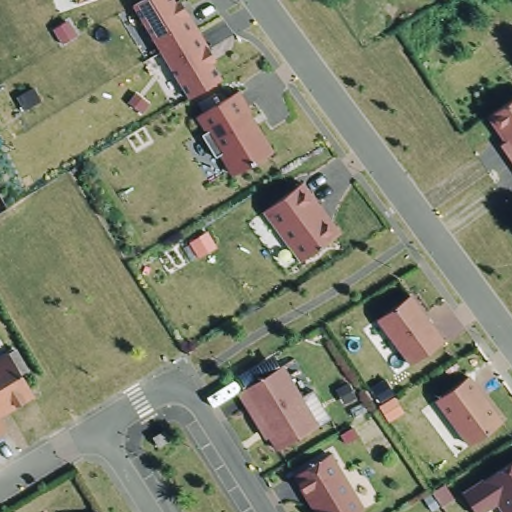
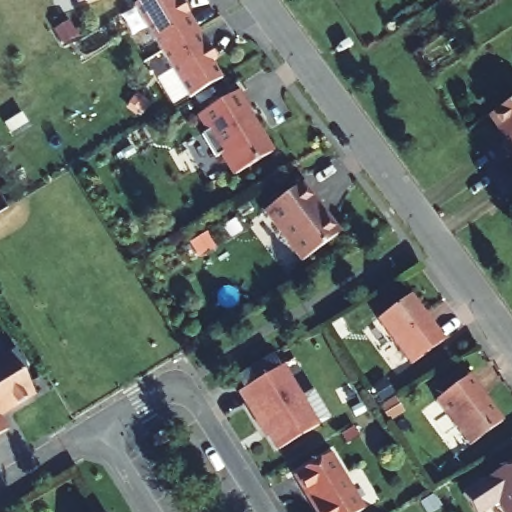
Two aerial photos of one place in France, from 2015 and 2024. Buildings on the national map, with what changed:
unchanged [(128,4),(135,0),(173,0),(215,71),(183,90),(128,4)]
unchanged [(228,172),(194,112),(234,90),(268,148),(228,172)]
unchanged [(482,115),(512,93),(512,159),(482,115)]
unchanged [(298,255),(260,207),(300,179),(335,229),(298,255)]
unchanged [(376,319),(409,295),(443,340),(411,365),(376,319)]
unchanged [(33,394),(0,413),(0,356),(7,352),(33,394)]
unchanged [(281,366),(317,426),(278,450),(263,425),(259,427),(238,392),(281,366)]
unchanged [(435,400),(468,375),(502,420),(469,445),(435,400)]
unchanged [(0,433),(0,421),(5,430),(0,433)]
unchanged [(158,447),(152,438),(164,430),(169,440),(158,447)]
unchanged [(497,503),(480,512),(469,512),(454,490),(512,453),(512,512),(503,512),(497,503)]
unchanged [(329,455),(363,510),(359,512),(315,512),(294,475),(329,455)]

